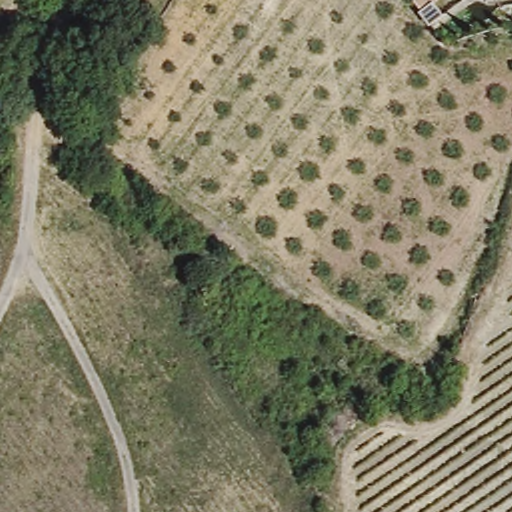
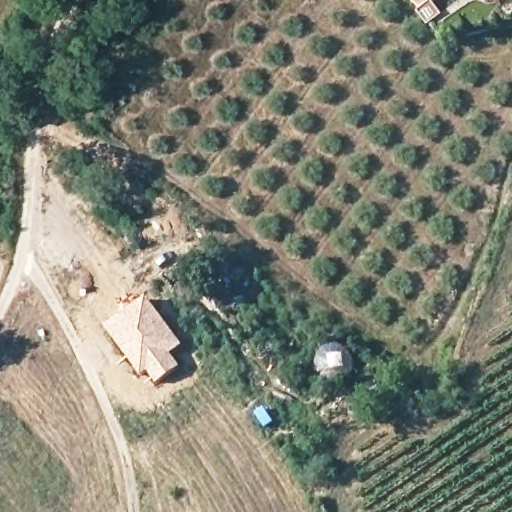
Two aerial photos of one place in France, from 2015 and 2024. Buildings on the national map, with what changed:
new [(146,295),(182,345),(172,353),(180,366),(155,385),(146,372),(140,376),(104,327),(146,295)]

